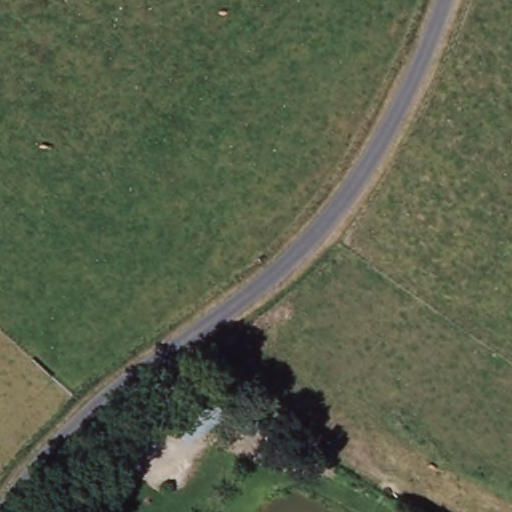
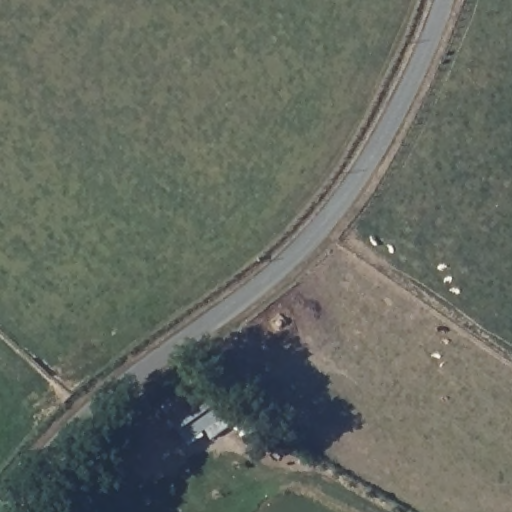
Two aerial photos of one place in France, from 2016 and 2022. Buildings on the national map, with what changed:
unchanged [(175,440),(158,416),(200,387),(217,411),(175,440)]
unchanged [(257,436),(246,447),(217,418),(228,407),(257,436)]

